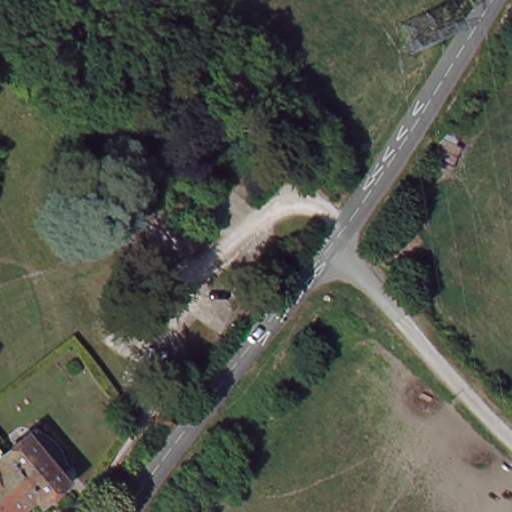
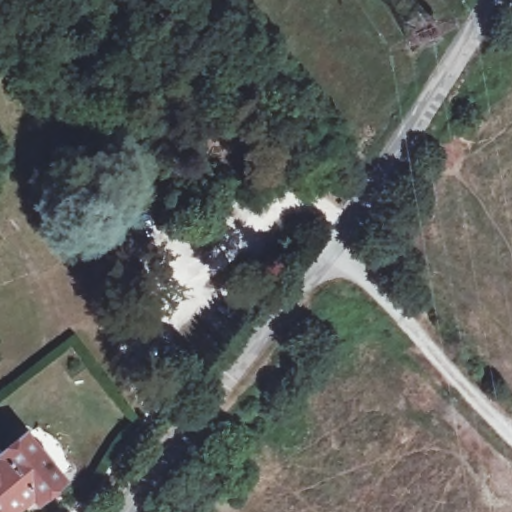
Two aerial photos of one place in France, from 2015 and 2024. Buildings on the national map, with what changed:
unchanged [(460,143),(466,147),(451,174),(426,159),(445,119),(467,129),(460,143)]
unchanged [(3,465),(27,446),(62,489),(39,509),(33,503),(22,512),(0,512),(0,473),(6,468),(3,465)]
unchanged [(6,468),(0,473),(0,462),(3,465),(6,468)]

